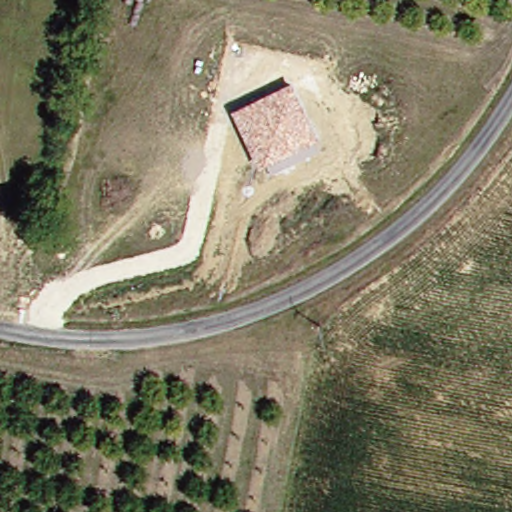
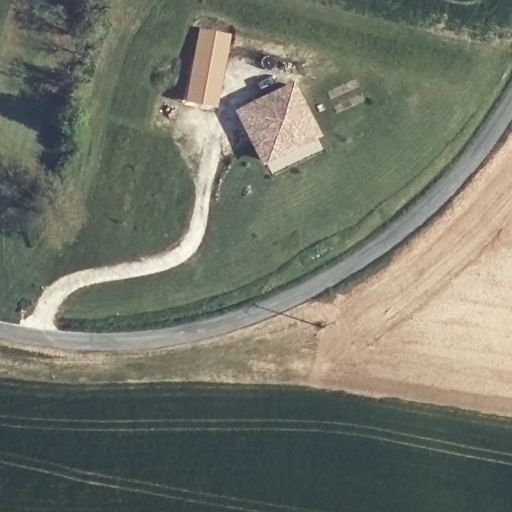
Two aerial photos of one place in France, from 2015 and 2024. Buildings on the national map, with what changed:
new [(183,102),(197,30),(228,35),(216,107),(183,102)]
unchanged [(233,112),(292,83),(319,139),(260,166),(233,112)]

